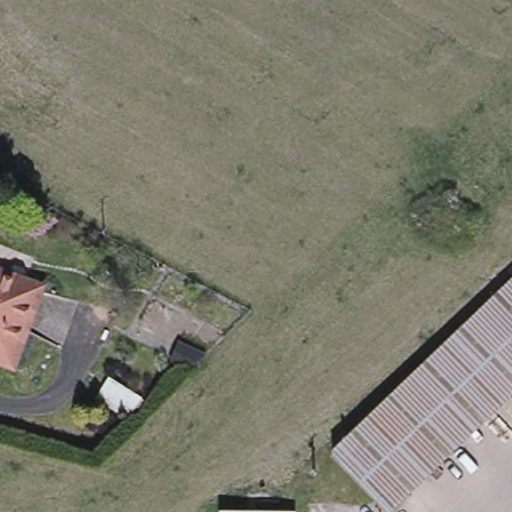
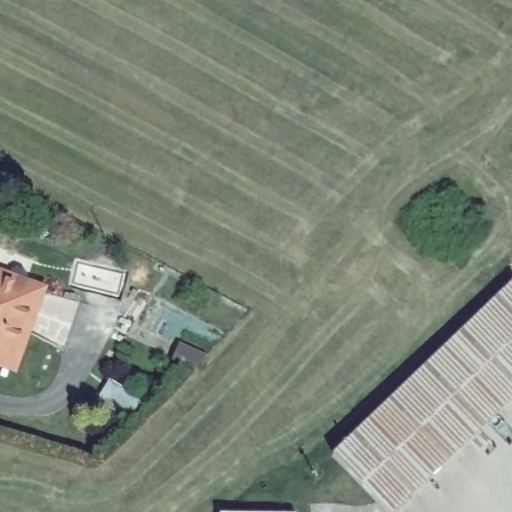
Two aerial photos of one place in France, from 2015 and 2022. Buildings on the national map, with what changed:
unchanged [(0,361),(0,272),(48,288),(19,368),(0,361)]
unchanged [(389,512),(334,454),(512,282),(512,397),(395,512),(389,512)]
unchanged [(206,357),(198,375),(178,366),(186,348),(206,357)]

